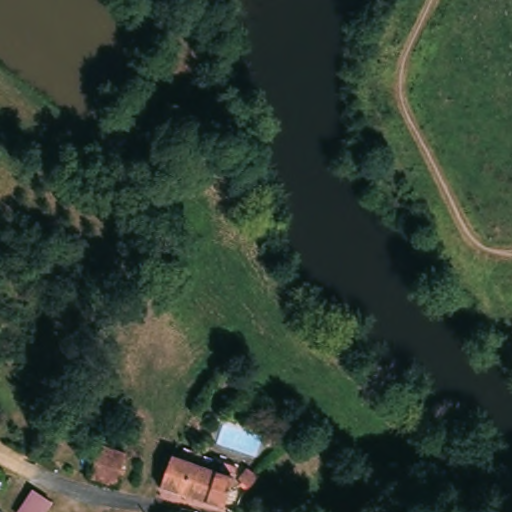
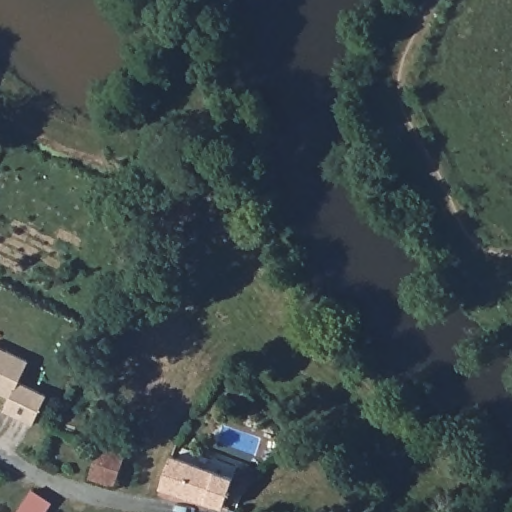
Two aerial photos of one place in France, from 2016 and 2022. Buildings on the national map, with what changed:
new [(19,382),(46,395),(33,425),(4,411),(10,398),(0,393),(0,347),(29,361),(19,382)]
unchanged [(101,435),(112,439),(109,450),(123,455),(115,484),(113,489),(86,480),(101,435)]
unchanged [(166,462),(229,482),(220,512),(219,512),(156,493),(166,462)]
unchanged [(253,480),(244,490),(234,482),(243,472),(253,480)]
unchanged [(23,512),(39,489),(51,497),(53,499),(43,512),(23,512)]

